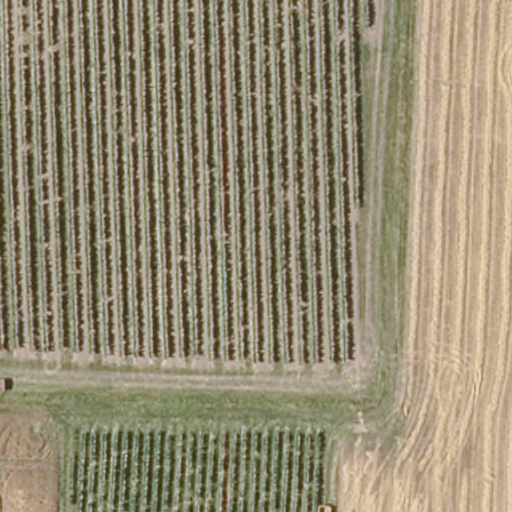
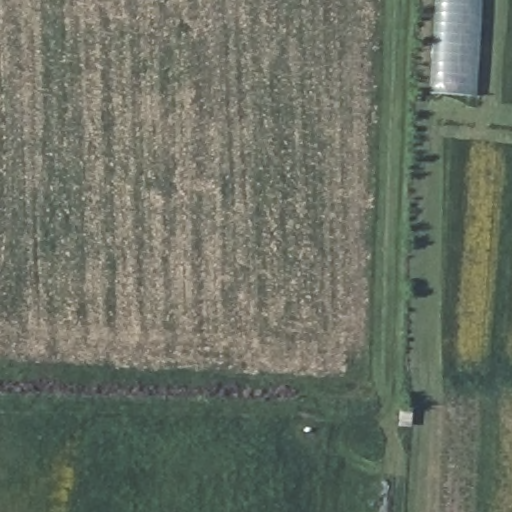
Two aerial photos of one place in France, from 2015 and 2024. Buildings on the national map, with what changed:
new [(429,0),(479,0),(473,96),(424,92),(429,0)]

